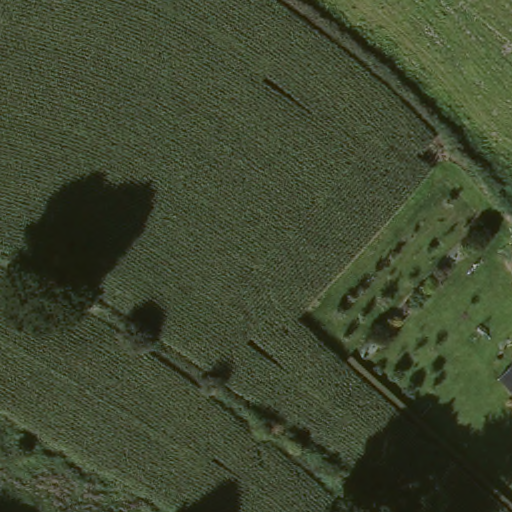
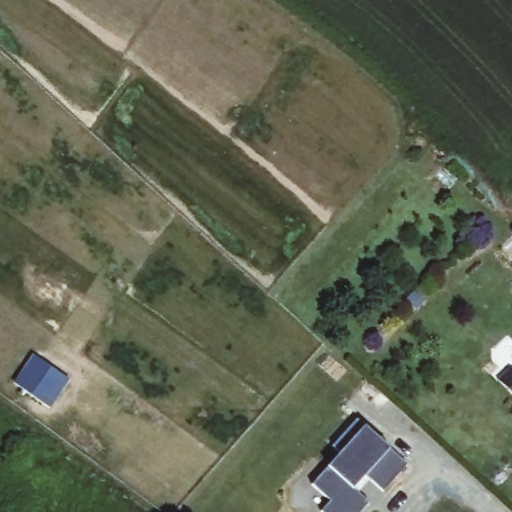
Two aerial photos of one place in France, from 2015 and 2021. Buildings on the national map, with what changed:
new [(35,353),(69,379),(49,406),(14,381),(35,353)]
unchanged [(512,369),(512,390),(501,378),(512,369)]
new [(345,449),(337,441),(360,416),(410,462),(387,488),(370,472),(358,485),(373,499),(362,512),(334,512),(326,505),(334,497),(316,480),(333,462),(345,449)]

